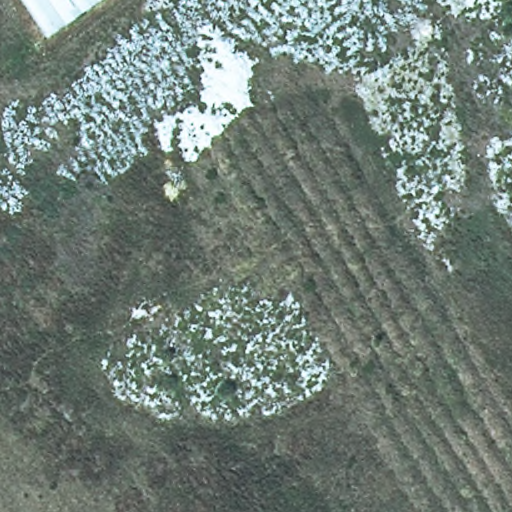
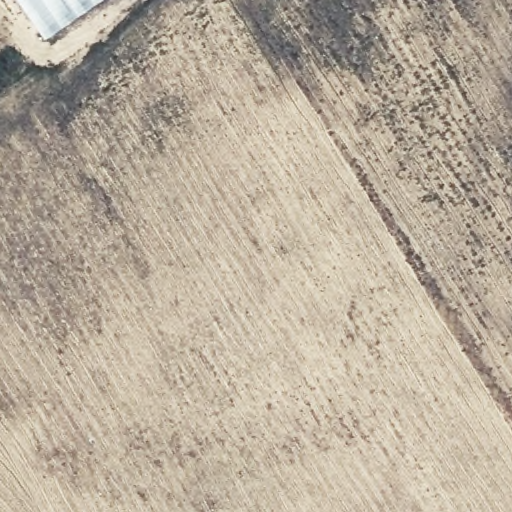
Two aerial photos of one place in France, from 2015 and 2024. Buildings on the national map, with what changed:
unchanged [(19,0),(93,0),(43,35),(19,0)]

